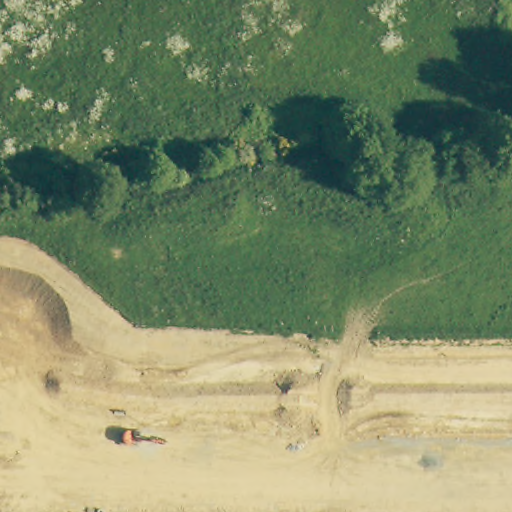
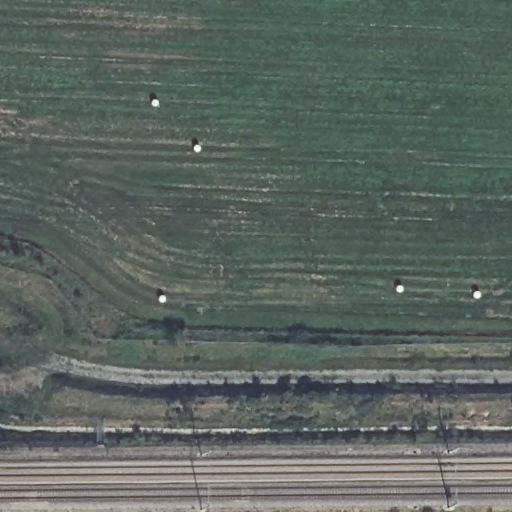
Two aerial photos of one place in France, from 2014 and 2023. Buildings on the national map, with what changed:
[]

